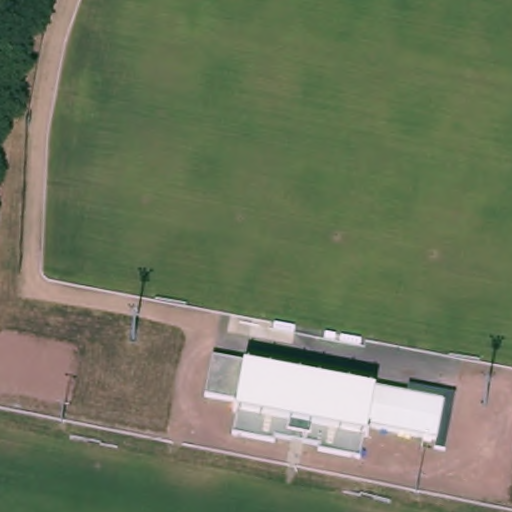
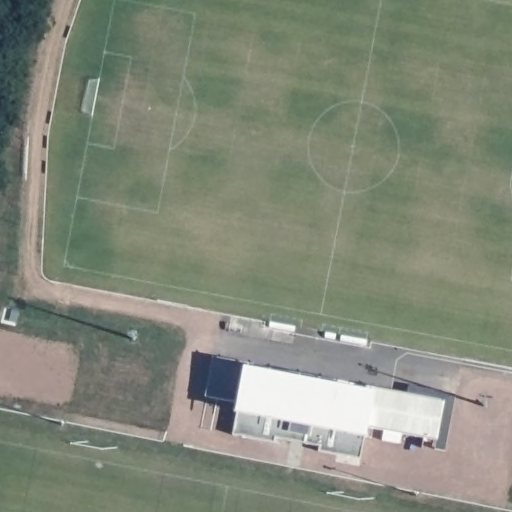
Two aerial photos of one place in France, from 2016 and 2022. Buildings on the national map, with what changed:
unchanged [(248,363),(247,368),(246,373),(372,396),(374,387),(446,401),(438,441),(367,427),(361,459),(319,451),(320,446),(276,438),(275,443),(233,435),(239,403),(205,397),(211,367),(213,357),(248,363)]

